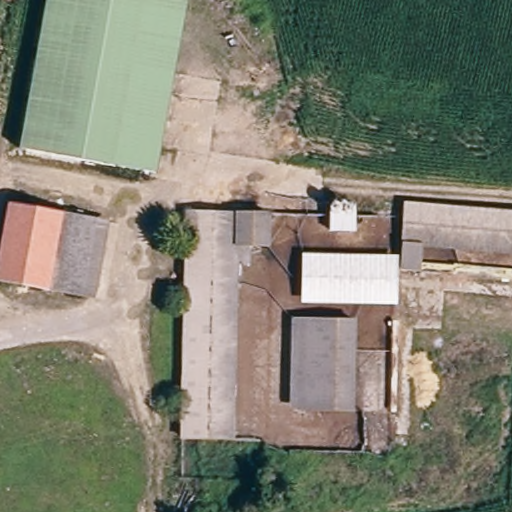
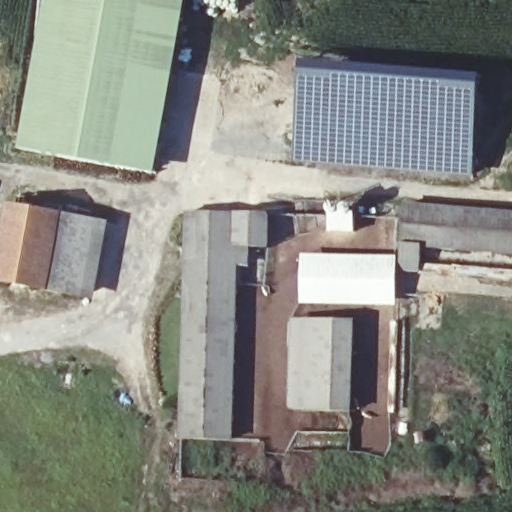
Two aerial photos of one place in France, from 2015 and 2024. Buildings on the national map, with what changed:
unchanged [(50,0),(175,0),(159,92),(36,76),(50,0)]
new [(296,161),(305,62),(484,77),(473,175),(296,161)]
unchanged [(144,169),(23,148),(36,76),(159,92),(144,169)]
unchanged [(53,287),(3,278),(15,201),(67,210),(53,287)]
unchanged [(512,212),(512,254),(420,250),(418,275),(396,273),(398,207),(512,212)]
unchanged [(266,250),(234,249),(184,247),(185,209),(268,212),(266,250)]
unchanged [(100,216),(86,292),(53,287),(67,210),(100,216)]
unchanged [(184,247),(234,249),(228,442),(227,442),(174,439),(184,247)]
unchanged [(302,304),(302,255),(396,258),(396,273),(396,305),(302,304)]
unchanged [(349,321),(347,410),(299,410),(300,319),(349,321)]

